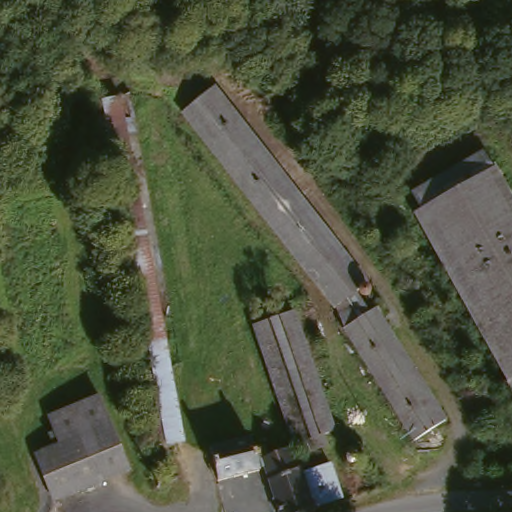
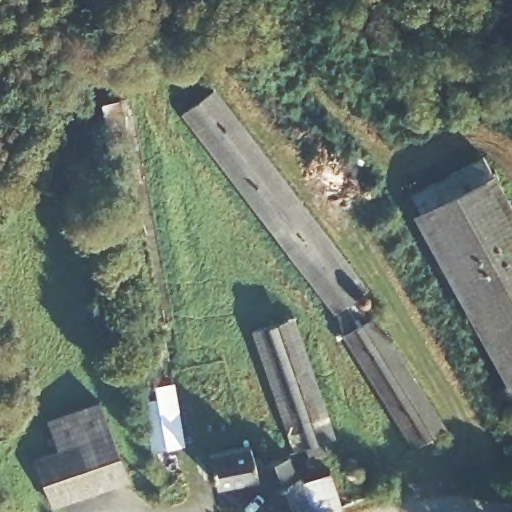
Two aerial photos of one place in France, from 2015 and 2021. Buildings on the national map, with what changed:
unchanged [(361,300),(374,320),(380,317),(450,430),(419,448),(349,336),(340,315),(188,117),(218,94),(372,291),(361,300)]
unchanged [(152,450),(143,400),(158,397),(103,102),(120,99),(184,444),(152,450)]
unchanged [(411,194),(483,154),(512,206),(512,374),(411,194)]
unchanged [(329,438),(333,447),(314,455),(310,445),(300,448),(258,328),(298,315),(340,435),(329,438)]
unchanged [(500,388),(512,382),(512,410),(500,388)]
unchanged [(58,508),(40,462),(64,452),(53,423),(104,403),(133,478),(58,508)]
unchanged [(270,448),(273,458),(292,452),(293,452),(301,472),(304,471),(306,477),(310,487),(318,512),(283,512),(269,472),(222,483),(218,464),(214,451),(224,449),(255,442),(259,452),(270,448)]
unchanged [(336,467),(346,502),(318,512),(310,487),(306,477),(336,467)]

